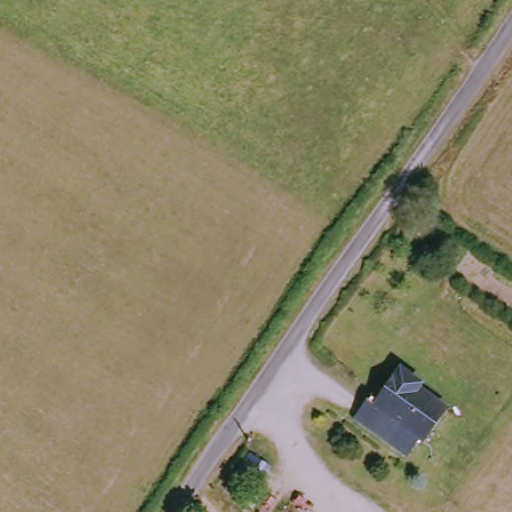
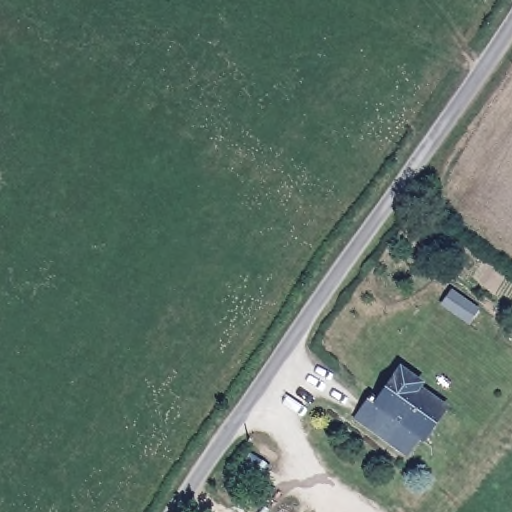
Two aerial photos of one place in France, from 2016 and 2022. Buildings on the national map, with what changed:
unchanged [(395,443),(354,416),(369,393),(373,396),(398,364),(420,378),(415,382),(445,405),(422,439),(417,436),(406,451),(395,443)]

